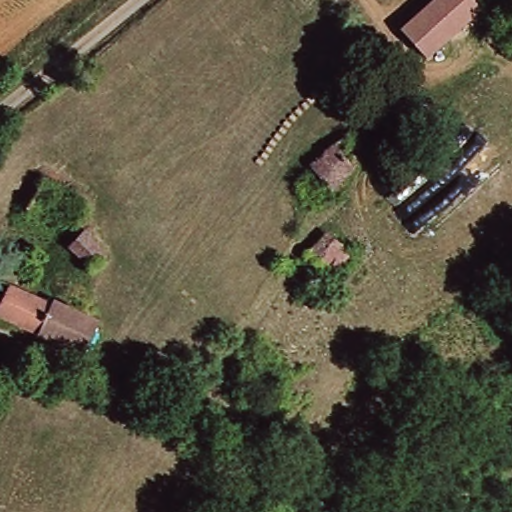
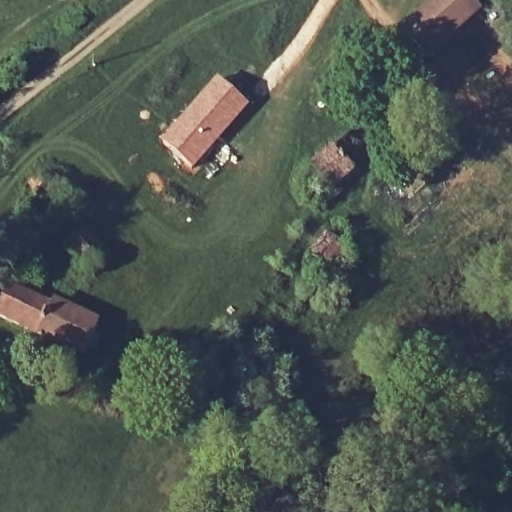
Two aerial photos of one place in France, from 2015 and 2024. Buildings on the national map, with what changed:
unchanged [(433,0),(476,0),(482,6),(426,60),(400,31),(433,0)]
new [(216,76),(250,105),(192,170),(160,140),(216,76)]
unchanged [(323,186),(303,161),(328,141),(340,130),(350,142),(337,153),(348,166),(323,186)]
unchanged [(63,241),(79,227),(100,252),(85,265),(63,241)]
unchanged [(318,230),(343,249),(320,281),(294,263),(318,230)]
unchanged [(80,354),(0,314),(0,301),(10,279),(96,318),(80,354)]

